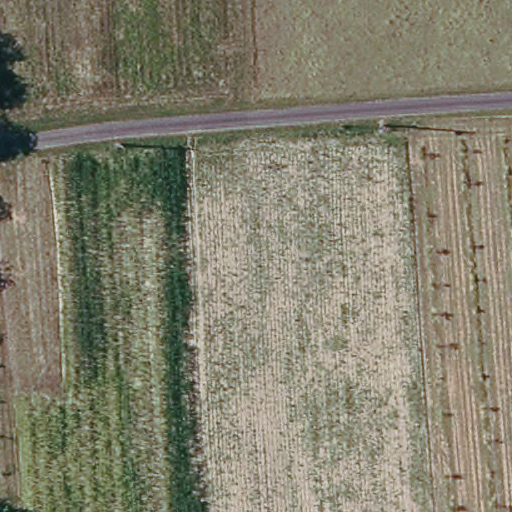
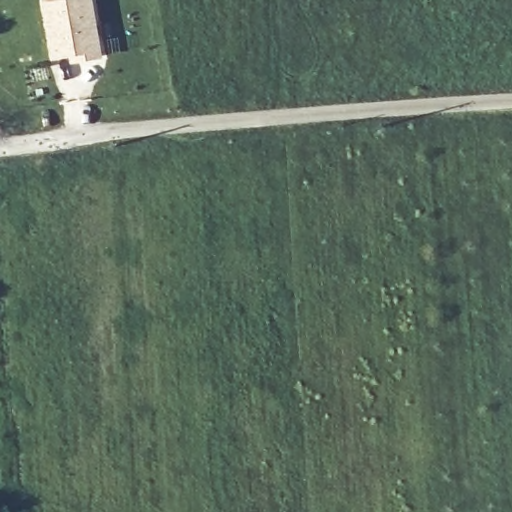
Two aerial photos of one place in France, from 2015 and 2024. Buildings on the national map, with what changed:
new [(72,63),(70,56),(52,59),(42,3),(55,0),(94,0),(102,58),(72,63)]

